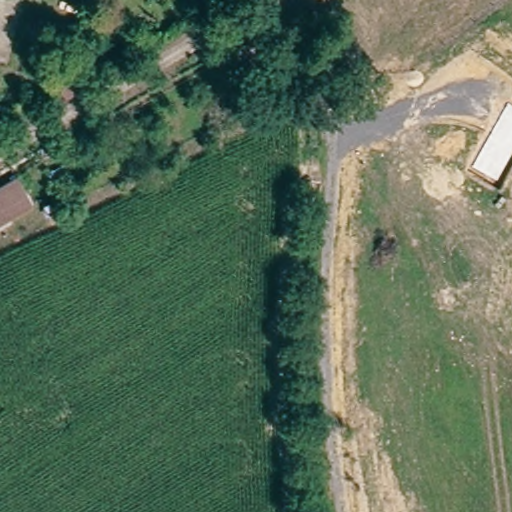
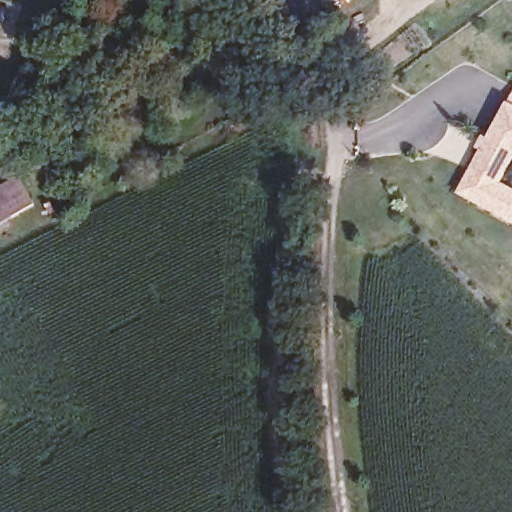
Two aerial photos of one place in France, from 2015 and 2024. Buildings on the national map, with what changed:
new [(512,186),(512,222),(457,192),(506,102),(512,105),(512,160),(501,180),(512,186)]
unchanged [(22,179),(39,212),(0,233),(0,192),(22,179)]

